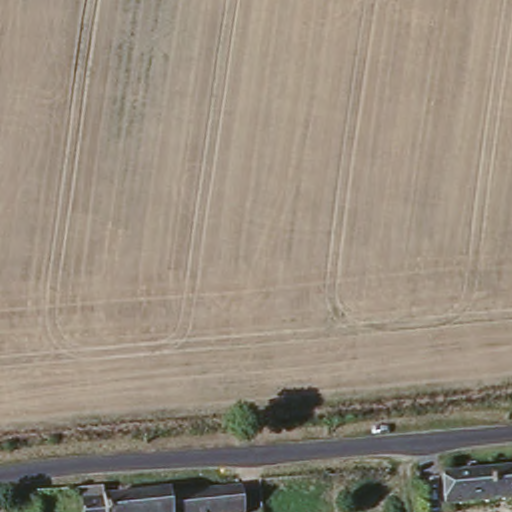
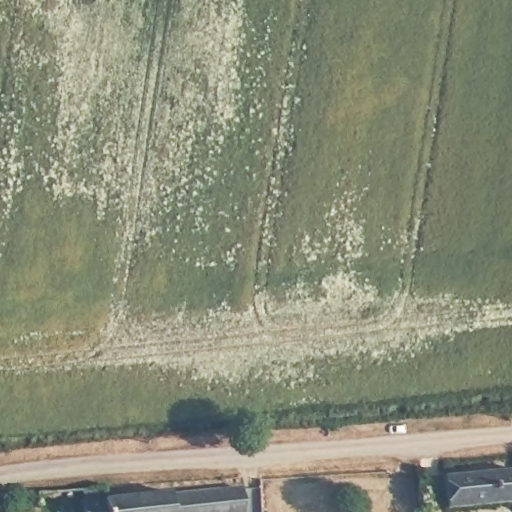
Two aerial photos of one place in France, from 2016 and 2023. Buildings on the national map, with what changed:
unchanged [(438,475),(512,468),(512,500),(441,505),(438,475)]
unchanged [(160,492),(160,497),(234,490),(236,512),(97,512),(97,500),(160,492)]

